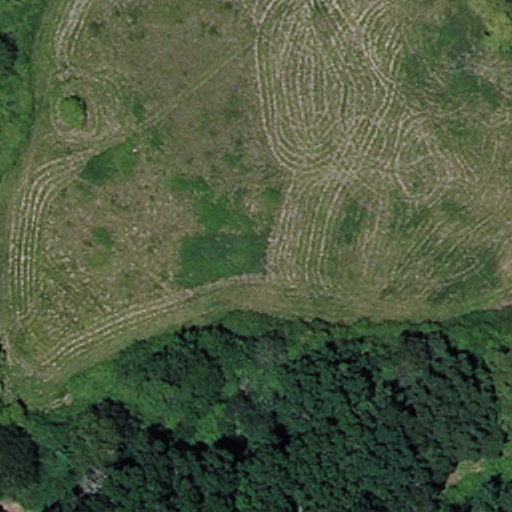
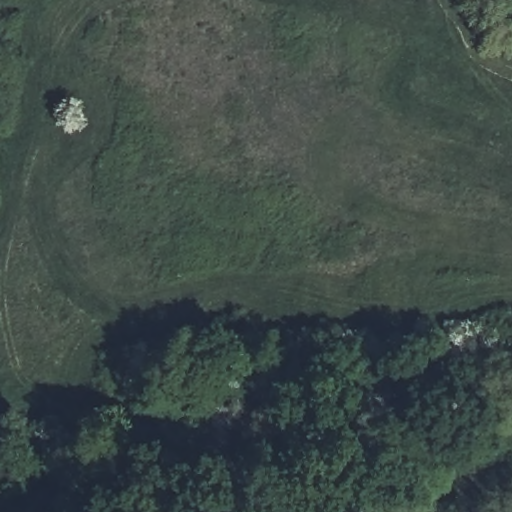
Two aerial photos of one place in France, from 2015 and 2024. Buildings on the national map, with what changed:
[]

